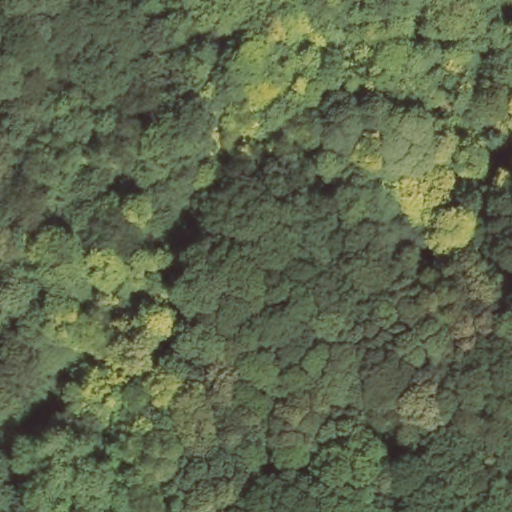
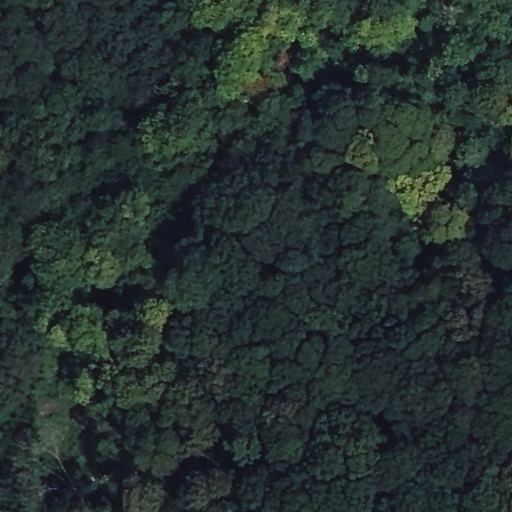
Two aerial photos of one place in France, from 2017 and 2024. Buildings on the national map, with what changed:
unchanged [(269,4),(247,10),(244,0),(268,0),(269,4)]

